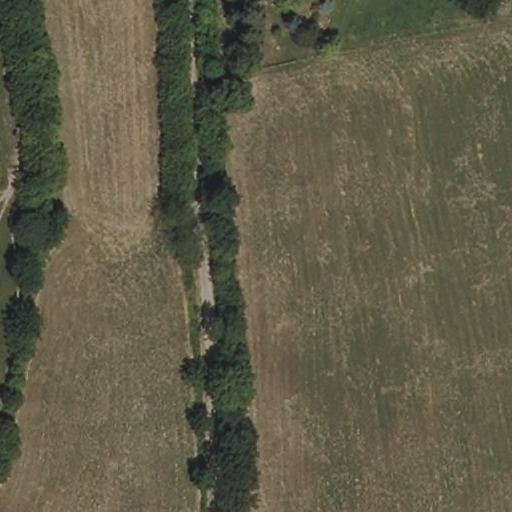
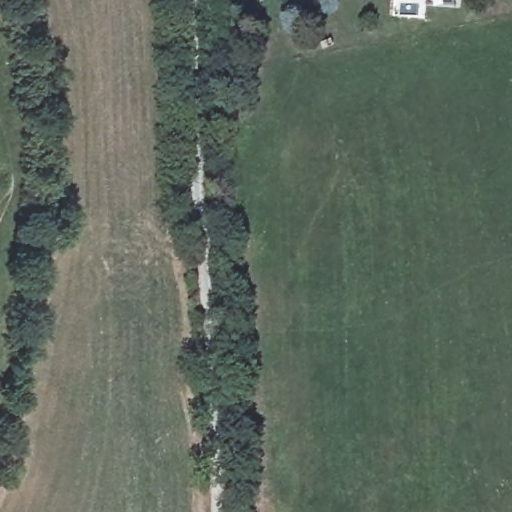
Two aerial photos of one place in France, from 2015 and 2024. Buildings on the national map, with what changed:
[]

